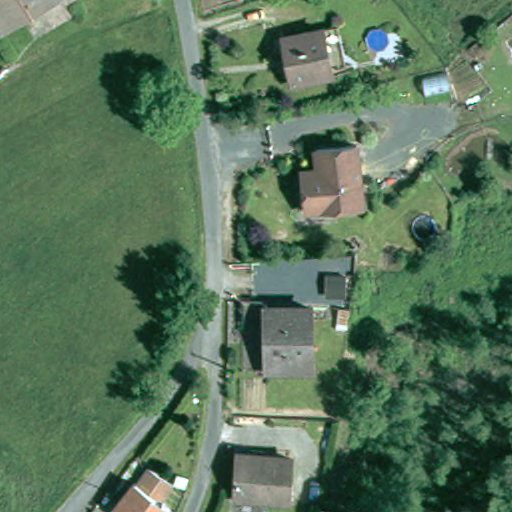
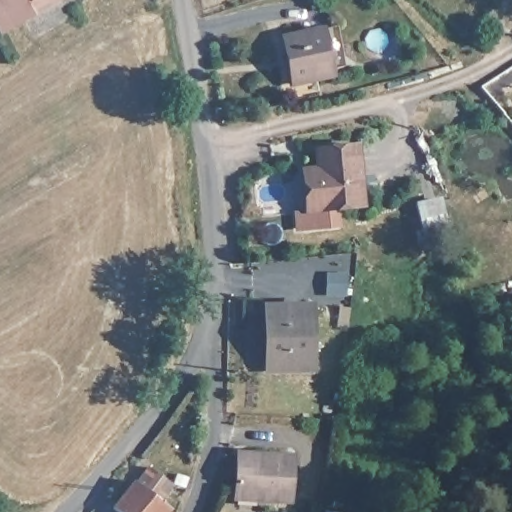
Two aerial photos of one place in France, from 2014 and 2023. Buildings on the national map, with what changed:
unchanged [(0,26),(0,0),(56,0),(3,31),(0,26)]
unchanged [(337,26),(345,66),(332,69),(333,76),(293,84),(284,36),(323,29),(337,26)]
unchanged [(365,204),(363,204),(317,210),(313,185),(311,170),(321,170),(318,150),(347,147),(357,146),(365,204)]
unchanged [(339,295),(343,260),(357,261),(353,295),(339,295)]
unchanged [(335,327),(339,305),(352,306),(349,329),(335,327)]
unchanged [(312,306),(313,368),(267,369),(267,307),(312,306)]
unchanged [(239,455),(292,457),(290,499),(237,496),(239,455)]
unchanged [(135,486),(137,487),(148,473),(172,488),(177,478),(189,482),(185,493),(173,489),(162,506),(170,512),(115,512),(135,486)]

